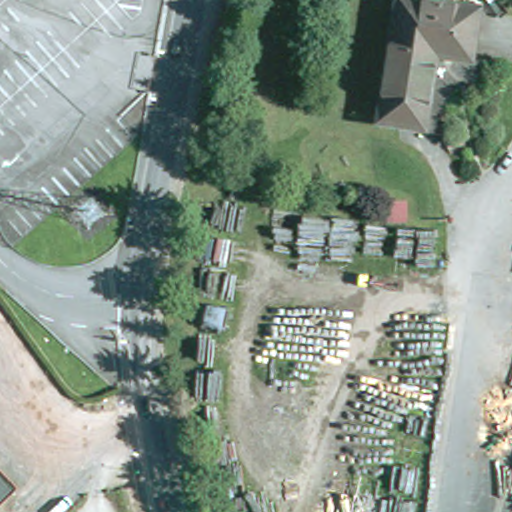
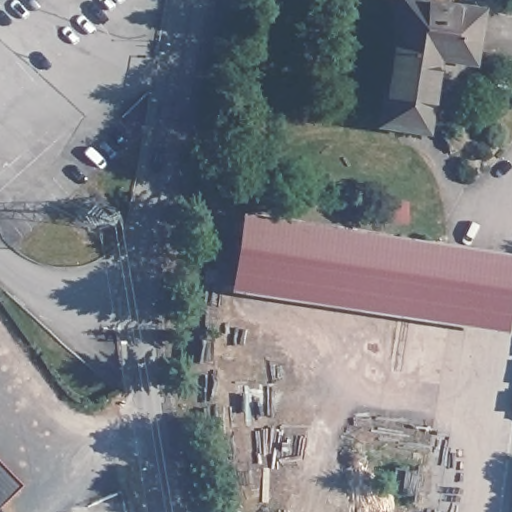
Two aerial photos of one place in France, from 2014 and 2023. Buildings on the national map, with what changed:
unchanged [(464,59),(432,54),(419,129),(374,121),(394,0),(401,0),(473,11),(464,59)]
new [(504,329),(228,288),(239,209),(512,252),(512,273),(504,329)]
unchanged [(13,483),(0,495),(0,469),(2,471),(13,483)]

